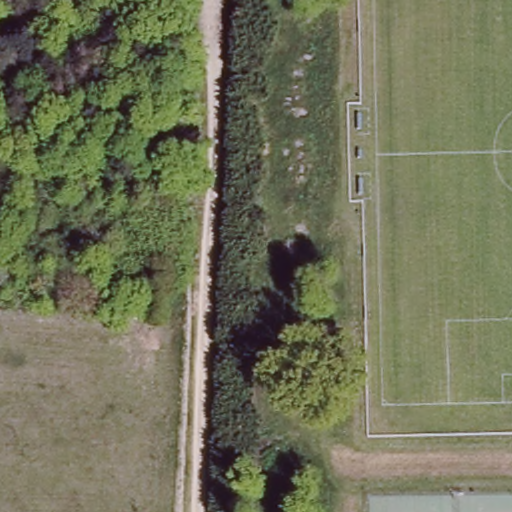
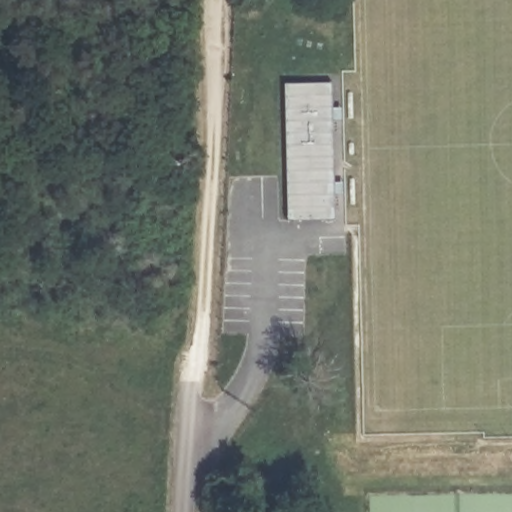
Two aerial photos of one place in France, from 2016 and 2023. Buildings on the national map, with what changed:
new [(286,84),(334,83),(334,108),(344,107),(344,120),(335,121),(336,182),(345,182),(345,195),(336,196),(337,220),(289,221),(286,84)]

